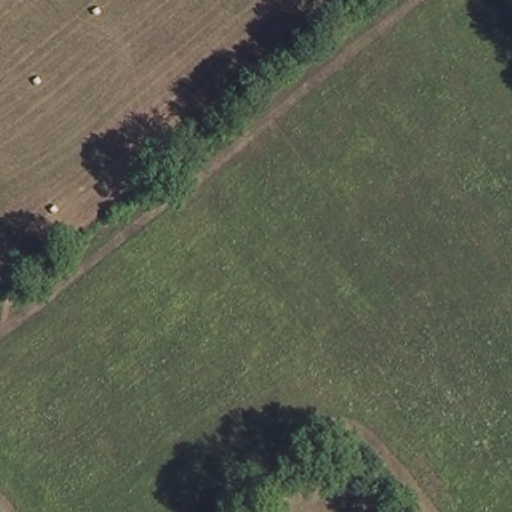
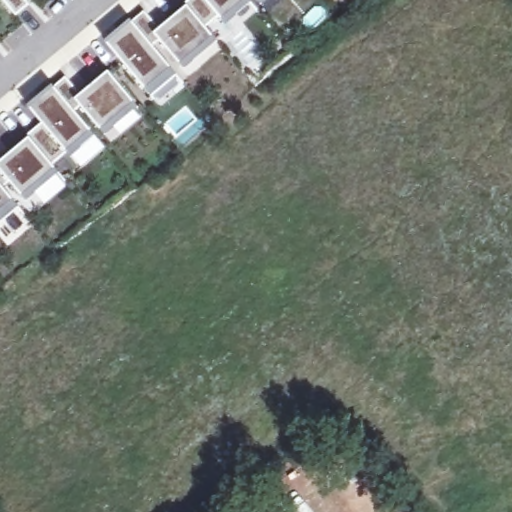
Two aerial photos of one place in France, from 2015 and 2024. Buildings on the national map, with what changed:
new [(16,14),(4,0),(27,0),(30,3),(16,14)]
new [(150,42),(130,18),(142,8),(154,22),(165,13),(167,17),(185,2),(183,0),(186,0),(190,5),(188,6),(210,32),(211,34),(178,61),(157,37),(150,42)]
new [(210,32),(188,6),(190,5),(186,0),(250,0),(252,3),(227,25),(224,21),(210,32)]
new [(261,6),(256,0),(269,0),(261,6)]
new [(110,45),(105,39),(117,28),(130,18),(150,42),(173,70),(148,91),(110,45)]
new [(80,94),(108,70),(135,102),(101,130),(80,105),(74,110),(53,86),(65,76),(80,94)]
new [(33,135),(30,132),(42,122),(35,113),(28,106),(40,97),(53,86),(74,110),(91,131),(51,164),(30,138),(33,135)]
new [(27,134),(30,132),(33,135),(30,138),(51,164),(55,168),(22,196),(10,180),(2,187),(0,184),(0,155),(2,158),(29,137),(27,134)]
new [(17,204),(0,218),(0,184),(2,187),(17,204)]

